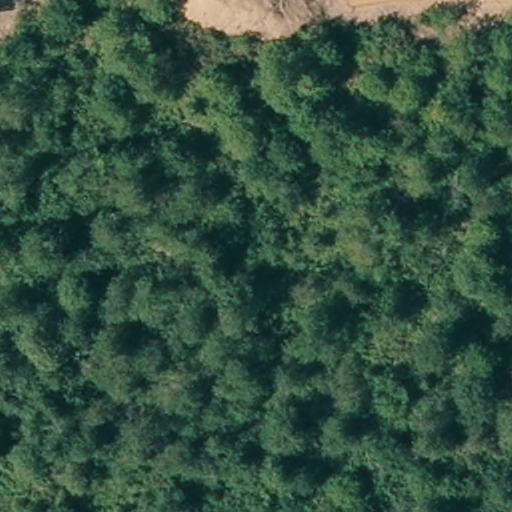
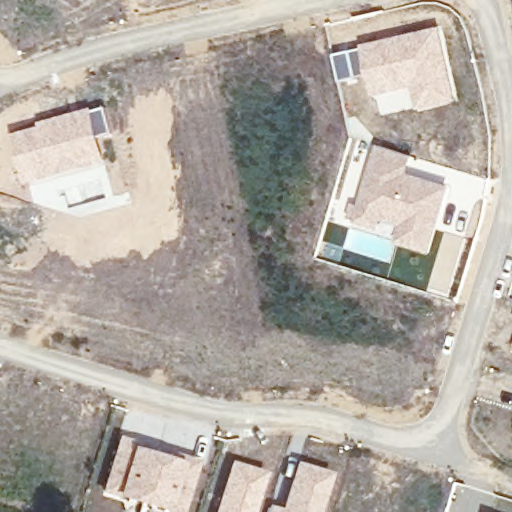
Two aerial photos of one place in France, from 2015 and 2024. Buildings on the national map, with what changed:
new [(458,101),(417,111),(410,90),(375,99),(368,76),(339,83),(332,54),(360,45),(441,26),(458,101)]
new [(39,124),(38,122),(105,105),(112,133),(100,137),(105,164),(26,186),(11,133),(39,124)]
new [(429,254),(392,243),(398,228),(381,222),(378,232),(351,223),(378,146),(413,156),(407,173),(451,187),(429,254)]
new [(184,512),(167,512),(116,497),(100,492),(119,436),(133,441),(131,447),(182,461),(185,456),(200,459),(184,512)]
new [(231,460),(268,472),(255,512),(215,512),(231,460)]
new [(321,512),(267,512),(269,505),(281,508),(296,461),(333,473),(321,512)]

